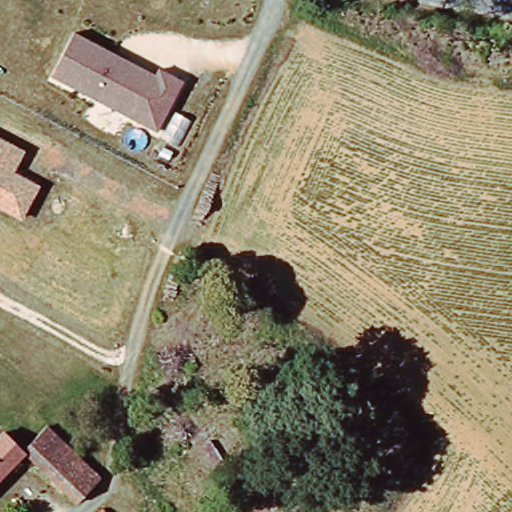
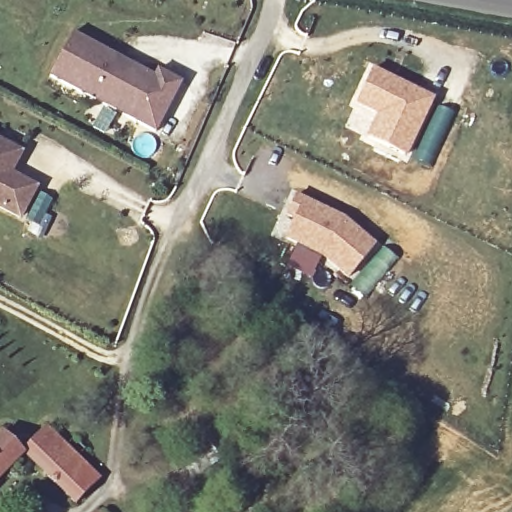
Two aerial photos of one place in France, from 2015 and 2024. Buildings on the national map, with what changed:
unchanged [(152,74),(156,65),(182,80),(157,131),(48,78),(72,32),(152,74)]
new [(374,66),(435,97),(406,157),(362,135),(370,118),(354,107),(374,66)]
new [(439,104),(457,112),(431,166),(414,156),(439,104)]
unchanged [(12,171),(38,185),(20,218),(0,208),(0,139),(22,149),(12,171)]
new [(288,223),(282,220),(296,192),(345,216),(377,241),(365,258),(364,260),(350,278),(322,257),(312,277),(287,264),(295,245),(281,237),(288,223)]
new [(364,260),(367,262),(384,244),(400,256),(367,295),(350,278),(364,260)]
unchanged [(85,512),(78,512),(27,458),(52,436),(102,491),(105,494),(85,512)]
unchanged [(0,481),(0,443),(7,437),(27,458),(0,481)]

